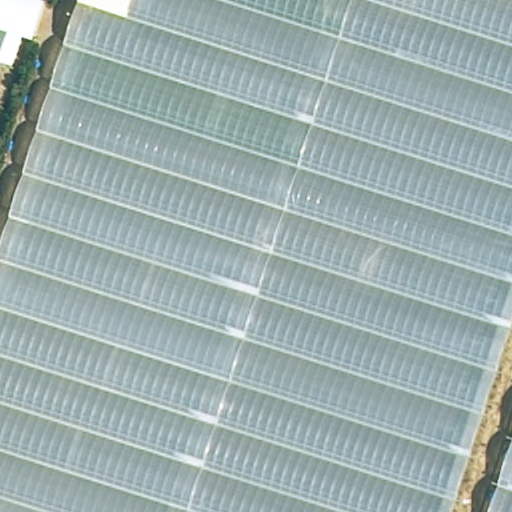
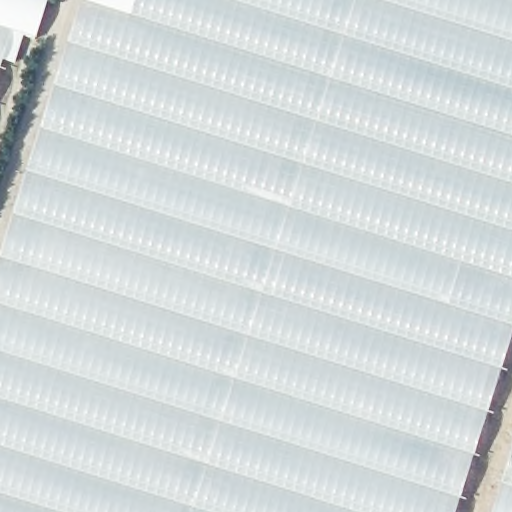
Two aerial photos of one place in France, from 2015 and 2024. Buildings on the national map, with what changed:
unchanged [(0,0),(20,0),(0,64),(0,0)]
unchanged [(457,512),(0,512),(0,248),(79,0),(512,0),(512,341),(457,512)]
unchanged [(493,512),(512,451),(512,512),(493,512)]

